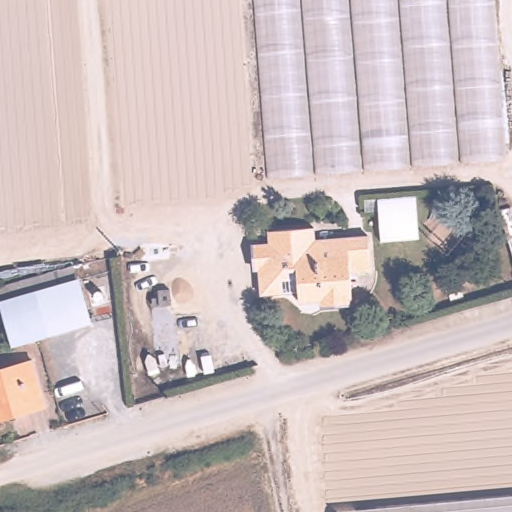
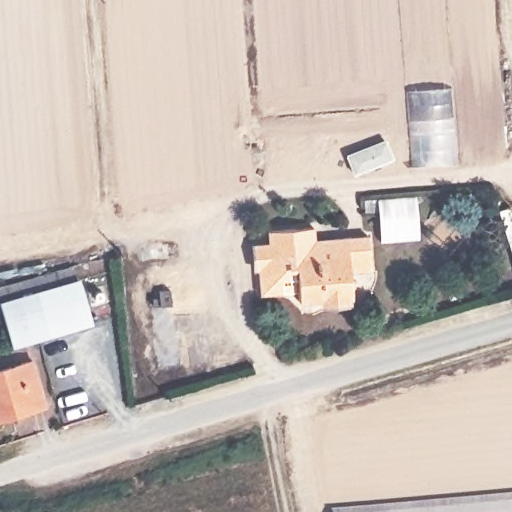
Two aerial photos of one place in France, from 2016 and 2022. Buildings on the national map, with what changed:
demolished [(496,23),(507,147),(271,171),(258,0),(512,0),(512,20),(496,23)]
unchanged [(497,210),(512,207),(512,209),(512,259),(497,210)]
unchanged [(267,237),(267,223),(267,222),(272,221),(312,218),(313,230),(320,236),(327,236),(334,227),(368,224),(371,261),(348,263),(351,287),(346,288),(346,291),(322,294),(322,290),(297,291),(297,281),(257,284),(257,259),(257,257),(261,255),(261,250),(255,250),(255,238),(267,237)]
unchanged [(76,262),(85,259),(87,274),(82,275),(95,319),(15,341),(2,297),(11,295),(9,287),(39,278),(42,286),(79,276),(76,262)]
unchanged [(168,289),(169,305),(158,306),(157,290),(168,289)]
unchanged [(44,401),(0,413),(0,366),(32,357),(44,401)]
unchanged [(512,493),(512,512),(340,512),(340,507),(512,493)]

